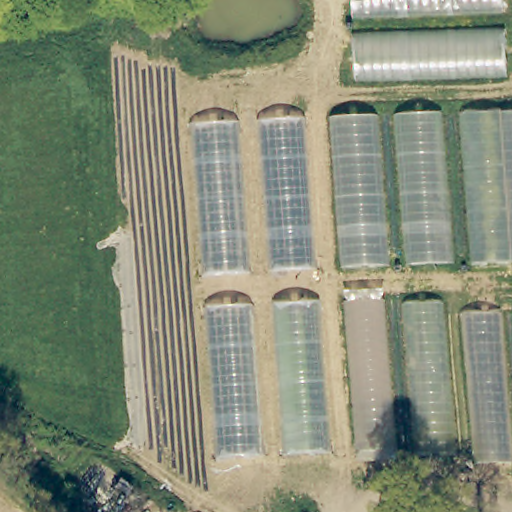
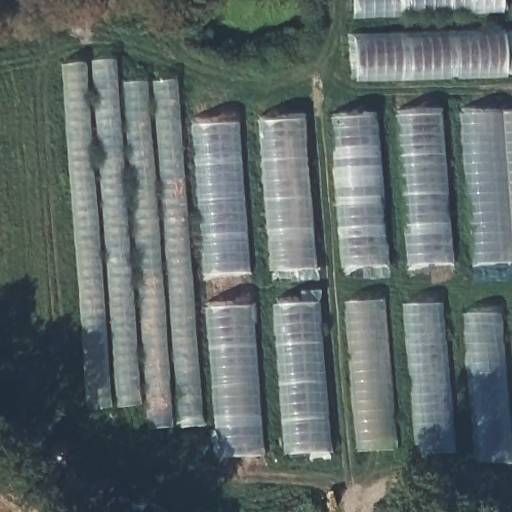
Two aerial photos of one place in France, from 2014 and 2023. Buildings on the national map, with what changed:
unchanged [(351,17),(351,0),(503,0),(503,11),(351,17)]
unchanged [(356,80),(352,39),(504,31),(506,76),(356,80)]
new [(113,59),(116,82),(174,78),(201,424),(149,429),(146,401),(87,410),(62,63),(113,59)]
unchanged [(472,262),(464,112),(512,111),(512,261),(472,262)]
unchanged [(411,265),(400,115),(437,112),(450,261),(411,265)]
unchanged [(348,267),(336,117),(374,114),(388,265),(348,267)]
unchanged [(281,269),(269,120),(303,119),(316,267),(281,269)]
unchanged [(206,273),(195,125),(235,122),(249,270),(206,273)]
unchanged [(358,461),(345,291),(382,289),(396,459),(358,461)]
unchanged [(286,454),(278,302),(318,301),(331,451),(286,454)]
unchanged [(418,455),(406,303),(444,303),(455,453),(418,455)]
unchanged [(217,458),(211,307),(251,306),(263,455),(217,458)]
unchanged [(475,463),(465,313),(498,313),(512,461),(475,463)]

